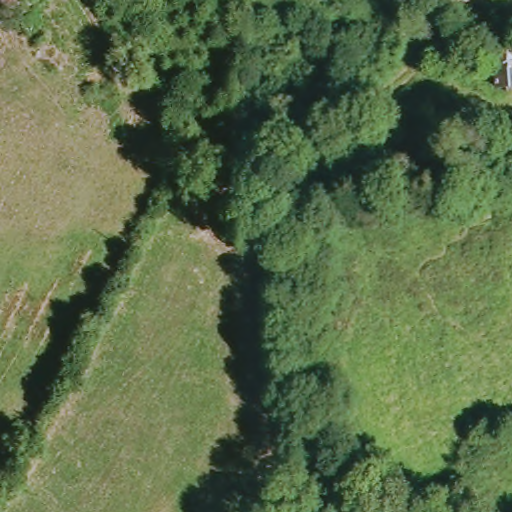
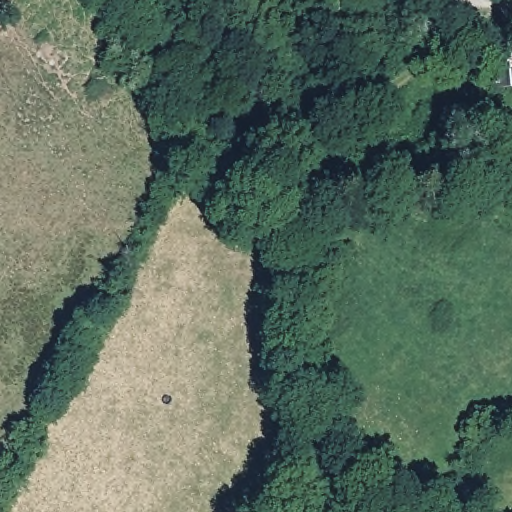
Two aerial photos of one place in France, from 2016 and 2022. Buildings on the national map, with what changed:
unchanged [(508,92),(504,49),(512,49),(512,92),(508,92)]

